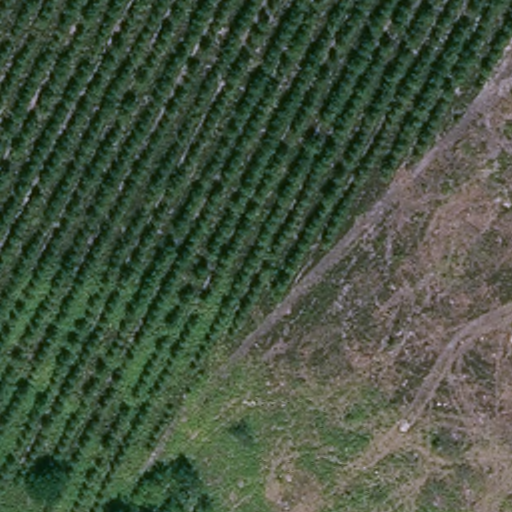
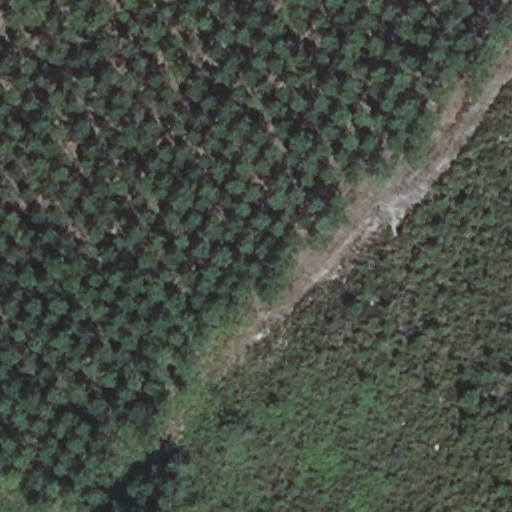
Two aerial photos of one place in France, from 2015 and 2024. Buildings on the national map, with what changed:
[]

